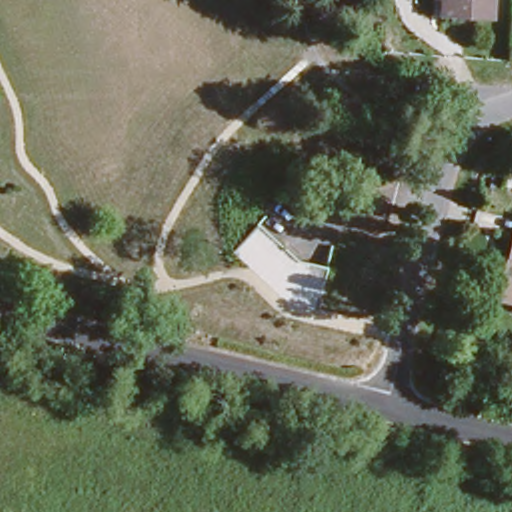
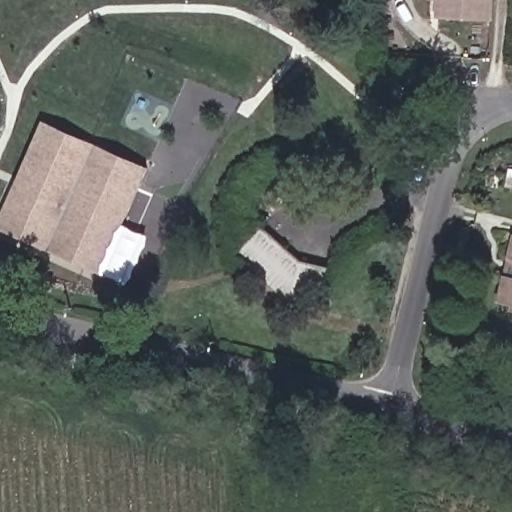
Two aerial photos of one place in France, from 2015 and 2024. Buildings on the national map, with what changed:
unchanged [(433,14),(434,0),(490,0),(488,19),(433,14)]
unchanged [(383,108),(387,90),(403,95),(399,112),(383,108)]
new [(149,238),(126,283),(0,229),(0,214),(42,120),(147,167),(122,224),(149,238)]
unchanged [(508,193),(493,190),(497,173),(511,176),(508,193)]
new [(263,227),(298,263),(328,271),(317,312),(292,307),(237,254),(263,227)]
unchanged [(508,228),(512,229),(512,308),(508,307),(510,300),(492,296),(497,277),(502,256),(508,228)]

